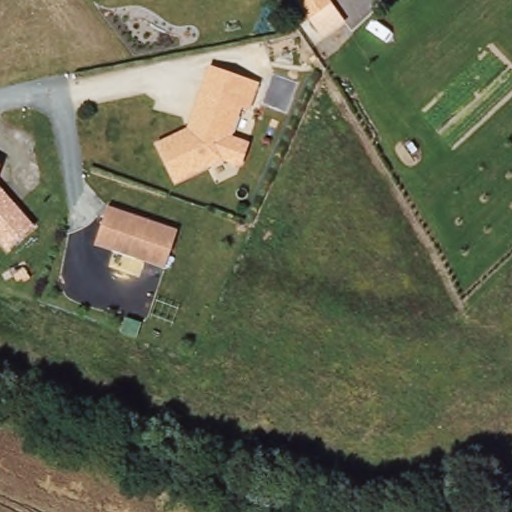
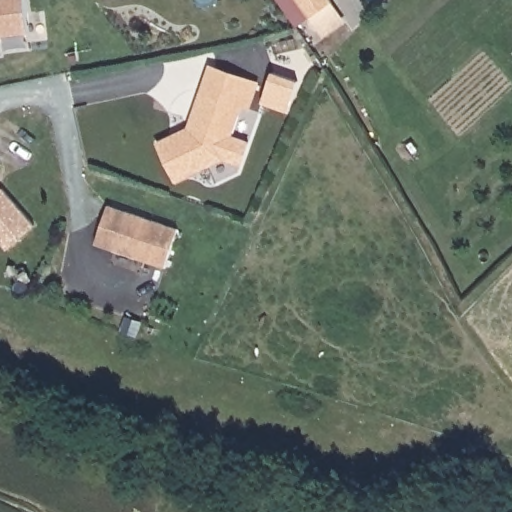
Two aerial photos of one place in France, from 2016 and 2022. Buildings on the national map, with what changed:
new [(0,35),(0,0),(26,0),(30,32),(0,35)]
unchanged [(292,0),(330,0),(347,24),(321,40),(292,0)]
new [(1,55),(0,55),(0,45),(1,55)]
unchanged [(189,129),(207,66),(261,81),(250,110),(244,108),(235,134),(250,139),(244,163),(225,159),(177,182),(159,141),(189,129)]
unchanged [(2,161),(0,181),(0,161),(2,161)]
unchanged [(37,225),(9,248),(0,238),(0,181),(37,225)]
unchanged [(180,227),(166,267),(99,240),(112,203),(180,227)]

